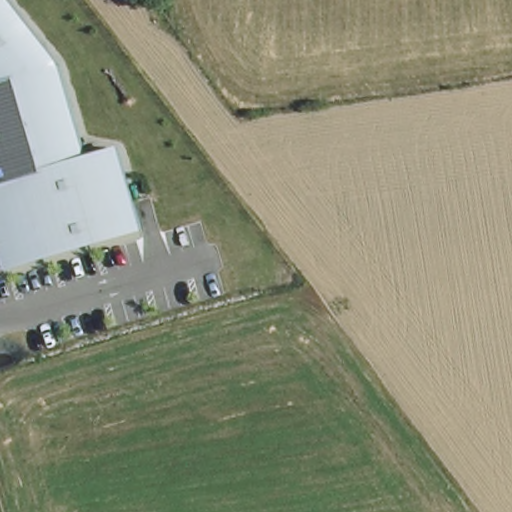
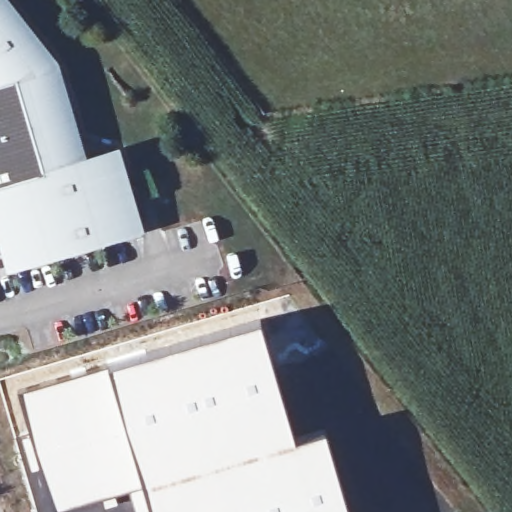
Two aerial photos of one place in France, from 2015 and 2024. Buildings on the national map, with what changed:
unchanged [(88,155),(121,146),(145,231),(8,271),(0,245),(0,0),(12,0),(60,59),(88,155)]
new [(296,436),(326,427),(352,512),(150,512),(143,485),(108,361),(261,318),(296,436)]
new [(108,361),(143,485),(129,489),(55,510),(40,467),(31,450),(15,389),(108,361)]
new [(150,512),(136,512),(129,489),(143,485),(150,512)]

